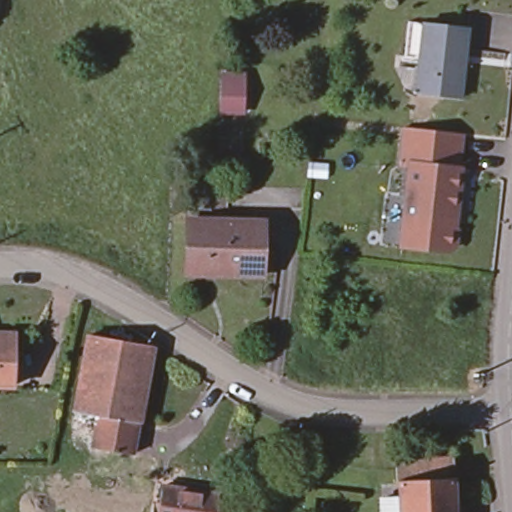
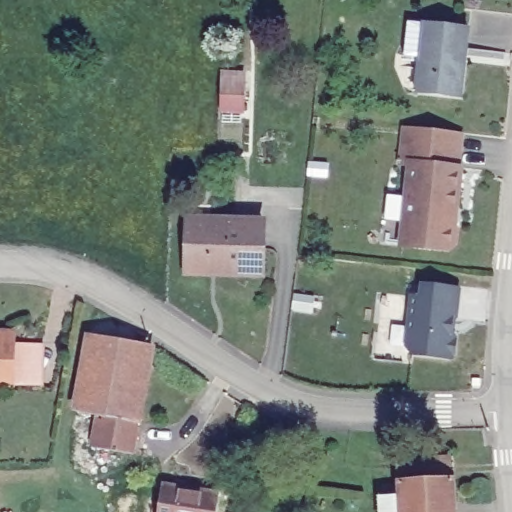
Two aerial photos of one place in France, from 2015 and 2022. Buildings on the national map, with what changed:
unchanged [(407,55),(410,20),(469,28),(462,97),(418,92),(421,57),(407,55)]
unchanged [(245,74),(245,109),(224,109),(225,74),(245,74)]
unchanged [(402,162),(406,126),(462,132),(459,167),(462,167),(458,207),(455,207),(454,222),(458,228),(457,243),(450,249),(403,244),(412,163),(402,162)]
unchanged [(214,272),(189,271),(190,230),(190,220),(213,221),(267,223),(265,269),(265,274),(214,272)]
new [(455,336),(457,336),(454,359),(412,355),(405,345),(410,293),(419,294),(420,281),(460,287),(455,336)]
unchanged [(158,343),(144,421),(105,414),(85,411),(98,332),(158,343)]
unchanged [(11,385),(0,384),(0,333),(12,333),(11,385)]
unchanged [(144,421),(139,452),(99,446),(105,414),(144,421)]
unchanged [(400,487),(400,484),(399,475),(399,464),(455,460),(456,474),(457,481),(457,484),(455,484),(456,512),(385,512),(385,502),(402,501),(402,487),(400,487)]
unchanged [(218,512),(161,512),(165,484),(220,493),(218,512)]

